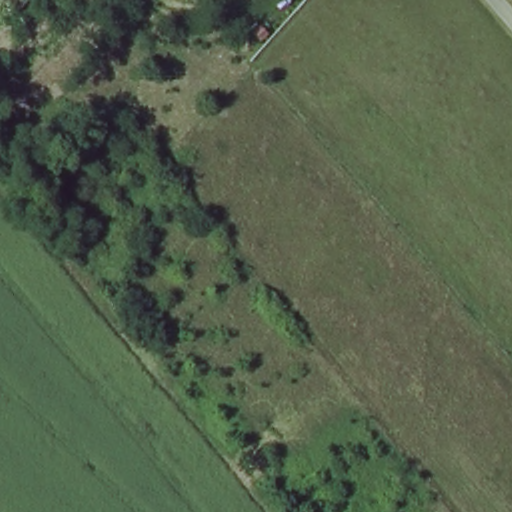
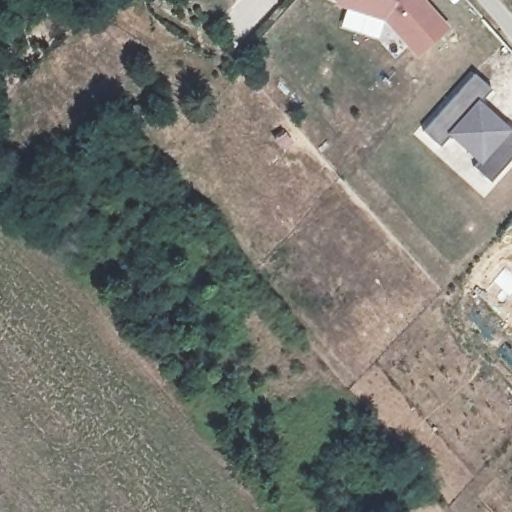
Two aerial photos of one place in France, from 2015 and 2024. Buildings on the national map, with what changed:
new [(415,59),(385,21),(335,6),(337,0),(422,0),(448,29),(415,59)]
new [(479,158),(451,134),(440,147),(421,131),(473,73),(491,89),(477,103),(506,129),(509,125),(512,127),(512,157),(490,182),(472,166),(479,158)]

